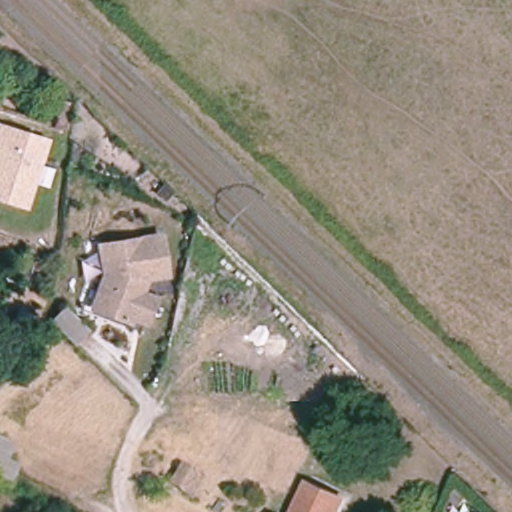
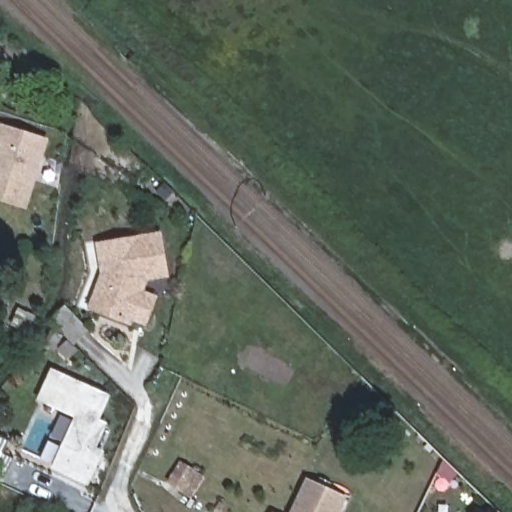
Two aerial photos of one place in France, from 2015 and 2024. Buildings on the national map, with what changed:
unchanged [(49,139),(27,209),(0,201),(0,124),(49,139)]
unchanged [(145,320),(131,314),(129,321),(94,307),(107,273),(104,243),(161,236),(166,276),(145,278),(141,290),(155,295),(145,320)]
unchanged [(73,345),(50,321),(65,307),(89,331),(73,345)]
unchanged [(19,310),(35,316),(28,331),(13,325),(19,310)]
new [(88,485),(51,468),(74,416),(38,400),(52,368),(110,394),(100,418),(108,422),(97,447),(104,450),(88,485)]
demolished [(38,423),(90,450),(72,483),(20,457),(38,423)]
unchanged [(11,444),(5,457),(20,465),(13,482),(0,476),(0,439),(11,444)]
unchanged [(185,467),(210,481),(199,502),(173,488),(185,467)]
unchanged [(343,499),(337,512),(295,512),(308,483),(343,499)]

